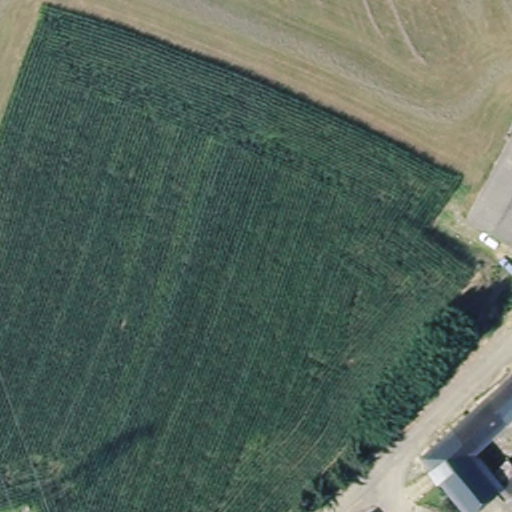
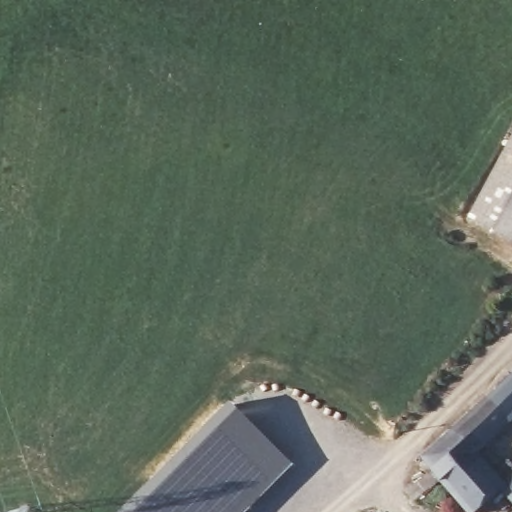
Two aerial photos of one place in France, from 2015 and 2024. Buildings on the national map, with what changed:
unchanged [(512,145),(512,244),(469,219),(512,145)]
unchanged [(484,512),(473,512),(424,462),(512,383),(512,424),(480,453),(499,476),(512,466),(512,497),(506,491),(484,512)]
new [(142,489),(199,434),(205,440),(238,409),(293,464),(248,512),(119,512),(142,489)]
demolished [(405,512),(367,512),(360,504),(398,471),(420,499),(405,512)]

